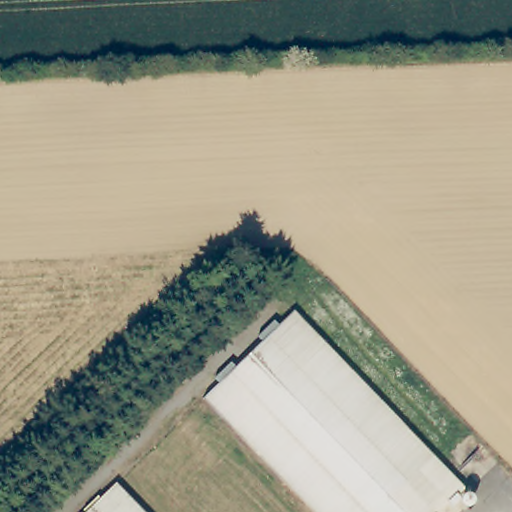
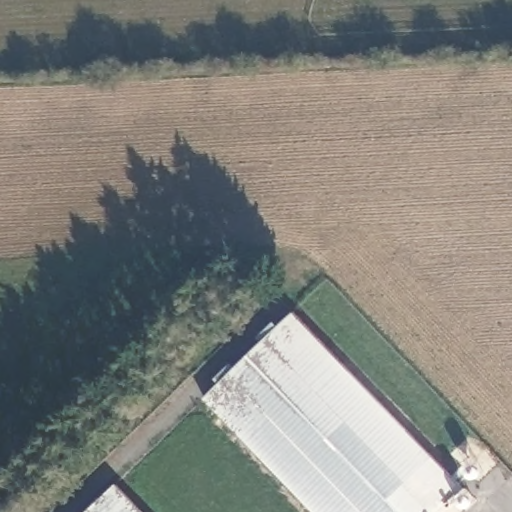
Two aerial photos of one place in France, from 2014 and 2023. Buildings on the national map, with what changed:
unchanged [(441,512),(309,512),(202,401),(290,315),(462,491),(441,512)]
unchanged [(137,512),(85,512),(112,485),(137,512)]

